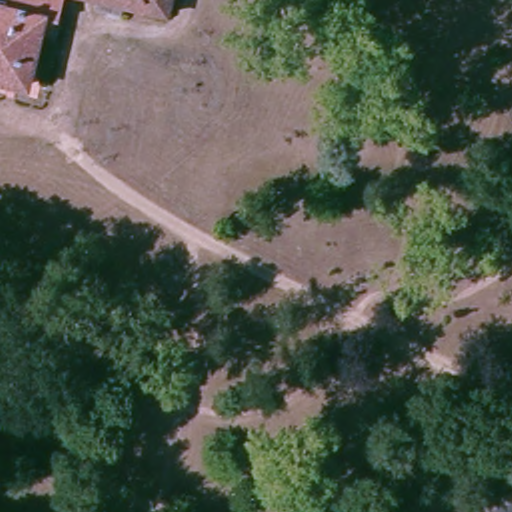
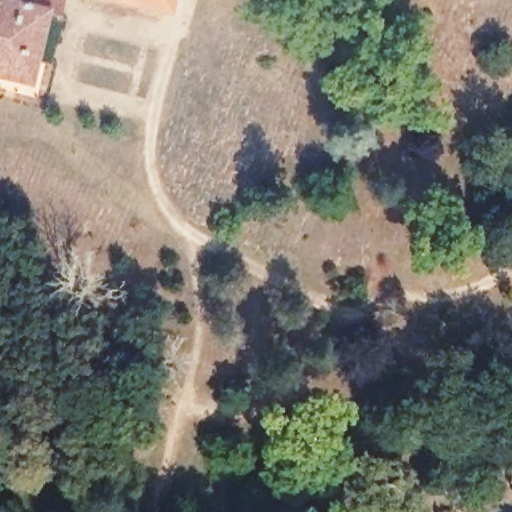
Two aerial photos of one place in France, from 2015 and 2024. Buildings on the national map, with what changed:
unchanged [(0,80),(0,6),(14,9),(17,0),(68,0),(61,26),(45,22),(29,87),(0,80)]
unchanged [(101,8),(104,0),(180,0),(176,15),(131,3),(128,15),(101,8)]

